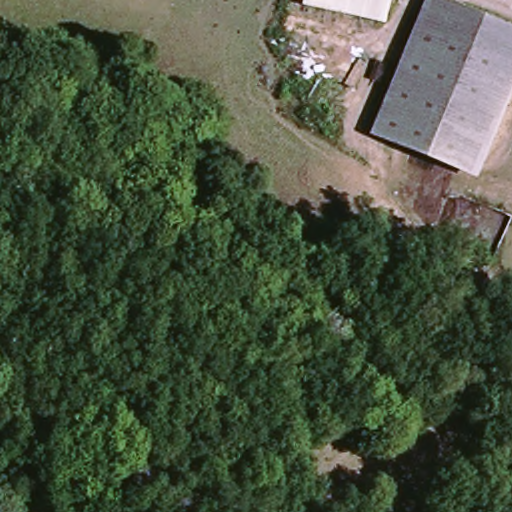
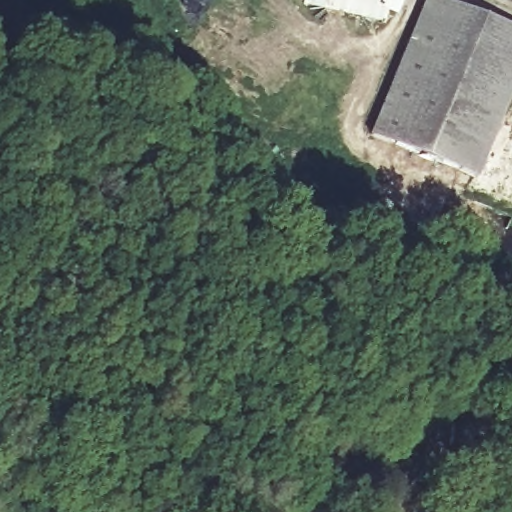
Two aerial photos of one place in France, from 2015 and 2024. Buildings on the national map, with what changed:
unchanged [(319,0),(388,0),(382,24),(320,11),(319,0)]
unchanged [(367,130),(425,0),(450,0),(512,27),(512,35),(455,168),(367,130)]
unchanged [(472,175),(455,168),(512,35),(512,83),(472,175)]

